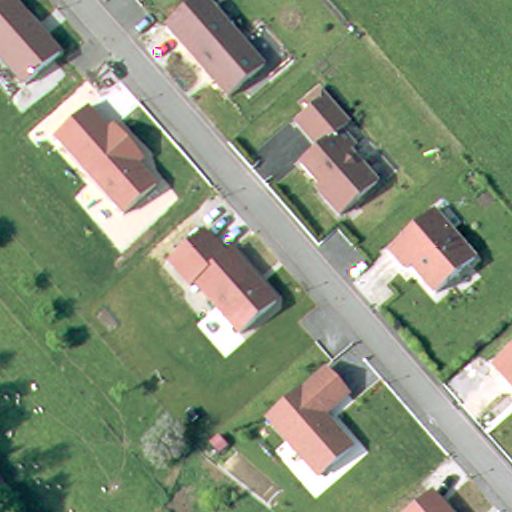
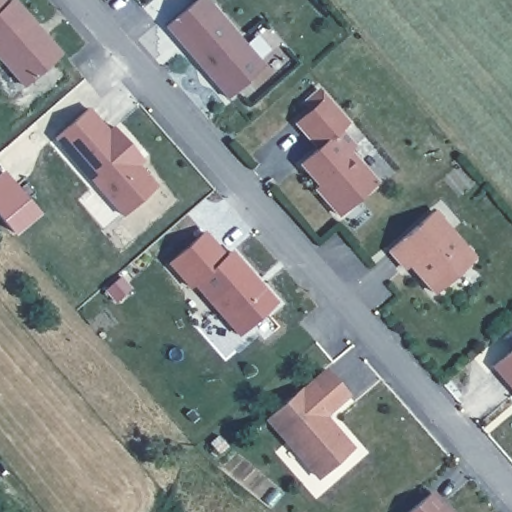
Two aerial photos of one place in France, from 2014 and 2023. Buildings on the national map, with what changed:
unchanged [(9,2),(12,0),(17,0),(62,52),(22,89),(0,61),(0,0),(6,0),(9,2)]
unchanged [(168,27),(200,0),(208,0),(266,69),(230,100),(216,83),(207,73),(168,27)]
unchanged [(316,187),(297,166),(315,151),(293,125),(307,112),(300,105),(316,92),(345,126),(338,132),(352,149),(346,154),(373,185),(336,218),(322,202),(312,191),(316,187)]
unchanged [(157,186),(123,217),(54,139),(87,107),(106,130),(113,125),(144,162),(139,165),(157,186)]
new [(39,213),(15,234),(0,217),(0,172),(3,170),(39,213)]
unchanged [(406,272),(389,253),(434,215),(475,262),(436,297),(421,281),(411,268),(406,272)]
unchanged [(193,287),(189,291),(167,263),(205,231),(226,254),(232,250),(277,302),(238,336),(193,287)]
unchanged [(491,367),(512,349),(512,389),(491,367)]
unchanged [(352,451),(319,480),(268,421),(301,392),(303,394),(328,372),(348,397),(324,418),(330,426),(337,433),(352,451)]
unchanged [(449,512),(407,512),(431,491),(449,512)]

